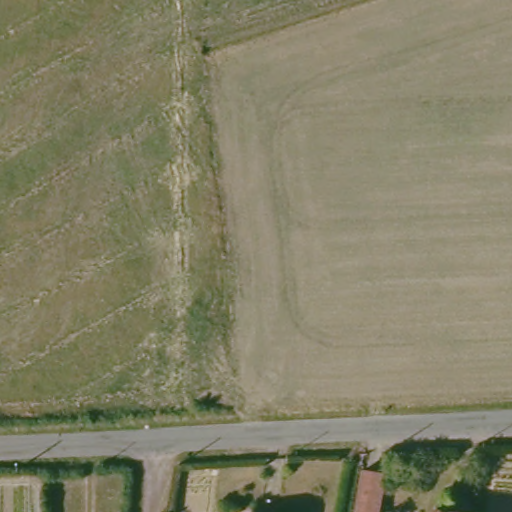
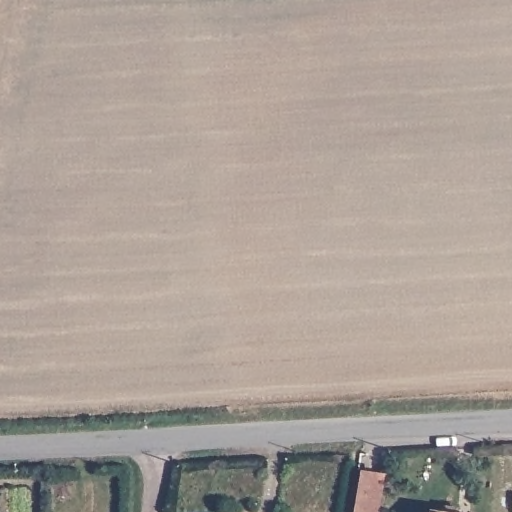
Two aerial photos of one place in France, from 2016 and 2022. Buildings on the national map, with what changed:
unchanged [(378,469),(371,512),(350,509),(355,467),(378,469)]

